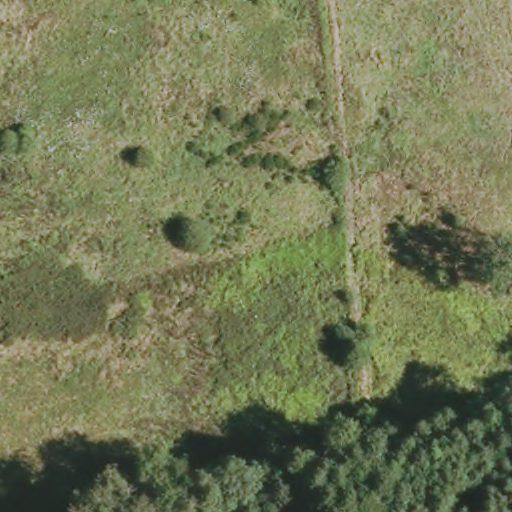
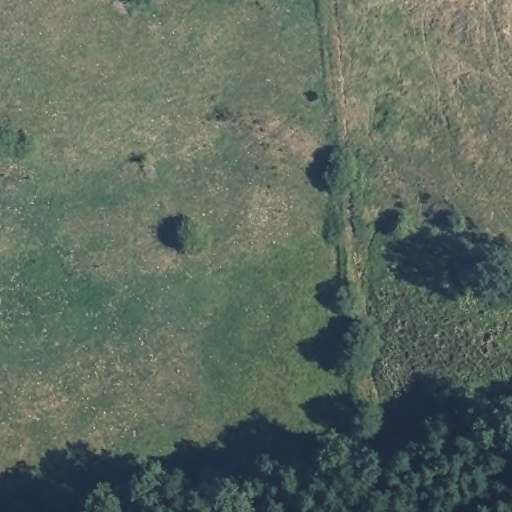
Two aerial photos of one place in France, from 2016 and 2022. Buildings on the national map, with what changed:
[]

